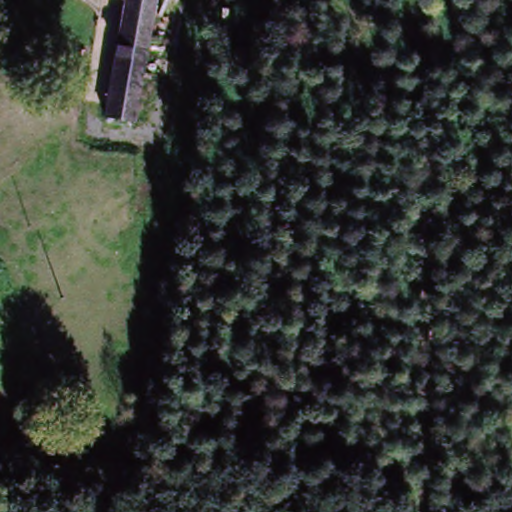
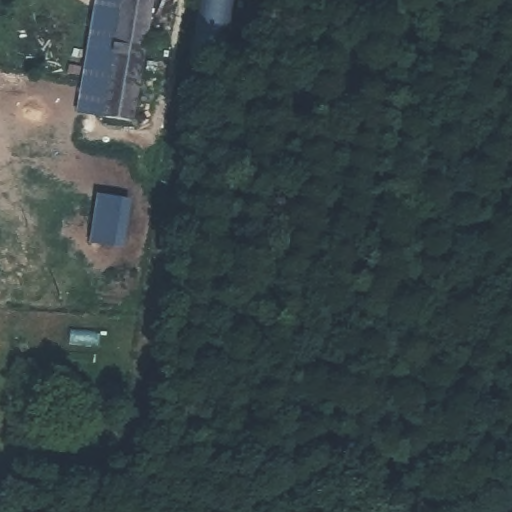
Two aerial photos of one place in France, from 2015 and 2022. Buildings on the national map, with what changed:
new [(97,0),(123,0),(104,118),(76,113),(97,0)]
unchanged [(158,0),(138,126),(104,118),(123,0),(158,0)]
new [(133,200),(126,250),(89,245),(97,195),(133,200)]

